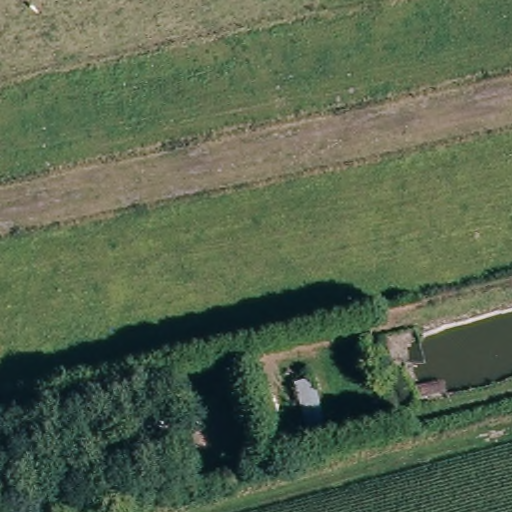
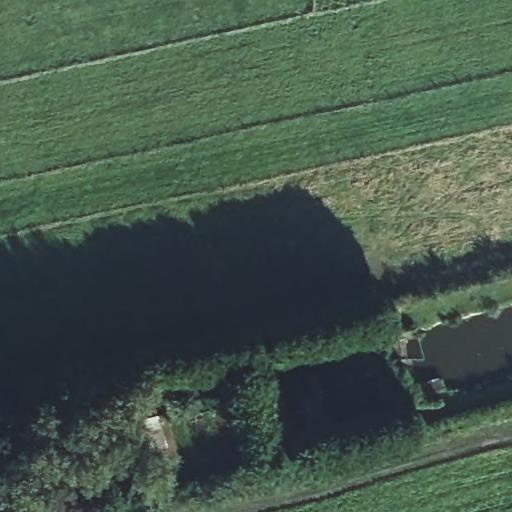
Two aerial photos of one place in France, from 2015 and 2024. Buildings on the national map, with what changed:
unchanged [(319,374),(327,411),(310,415),(301,377),(319,374)]

